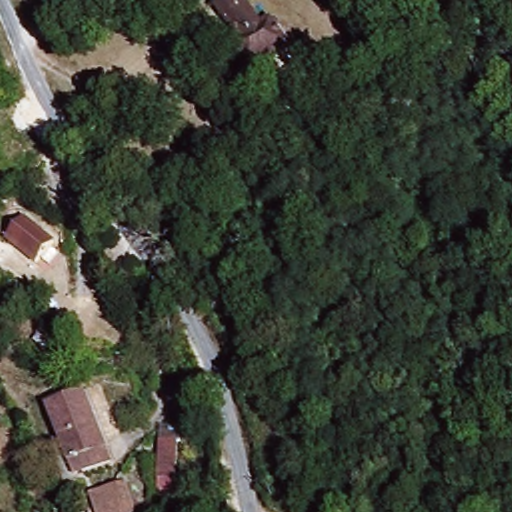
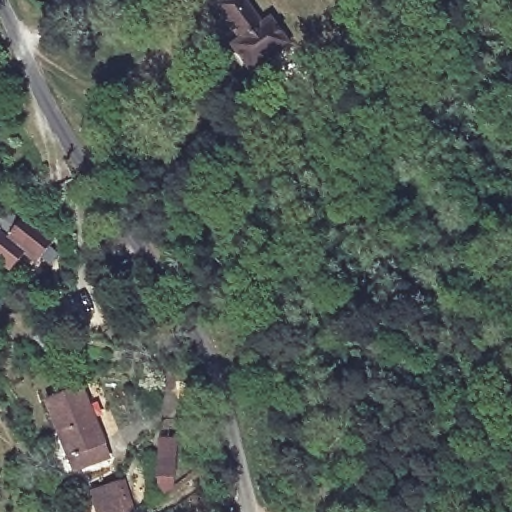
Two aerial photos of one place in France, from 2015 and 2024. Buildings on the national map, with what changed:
unchanged [(246,71),(238,58),(232,51),(238,45),(217,8),(229,0),(244,0),(262,27),(275,24),(281,35),(288,46),(246,71)]
unchanged [(34,258),(4,236),(20,213),(51,235),(34,258)]
unchanged [(50,396),(86,382),(113,452),(78,466),(80,472),(69,477),(51,432),(63,428),(50,396)]
unchanged [(158,475),(160,439),(176,440),(174,475),(158,475)]
unchanged [(100,512),(95,498),(130,486),(139,512),(100,512)]

